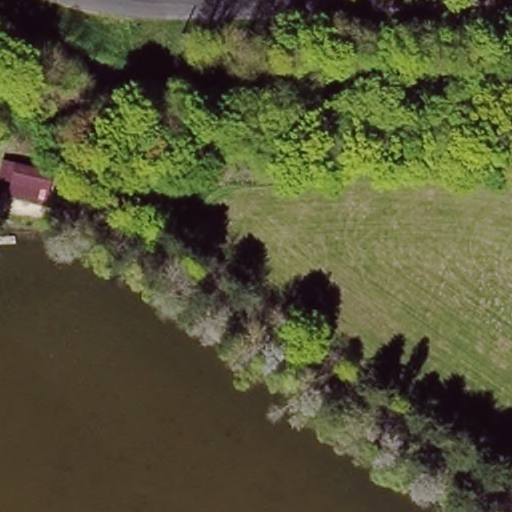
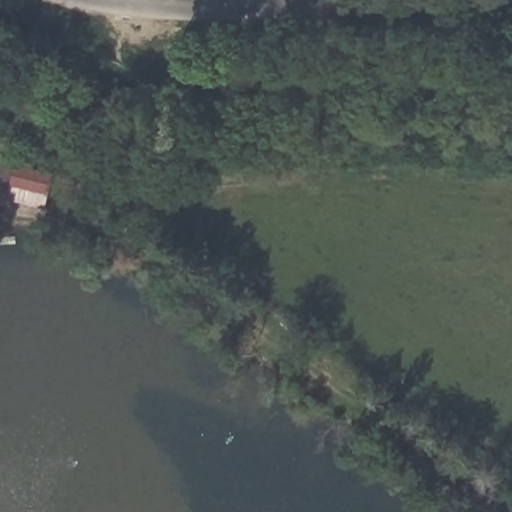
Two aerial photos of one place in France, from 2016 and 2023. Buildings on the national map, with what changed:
unchanged [(50,168),(48,202),(8,196),(13,163),(50,168)]

